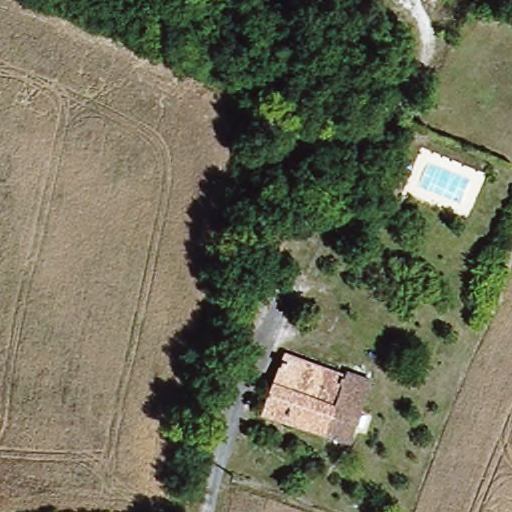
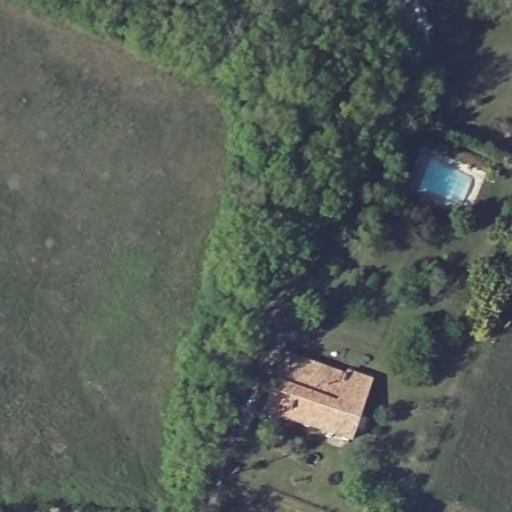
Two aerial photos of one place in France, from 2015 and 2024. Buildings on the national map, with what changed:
unchanged [(375,173),(371,185),(355,179),(362,167),(375,173)]
unchanged [(253,243),(239,239),(247,202),(277,210),(272,225),(267,224),(266,232),(263,245),(253,243)]
unchanged [(262,415),(280,356),(366,381),(346,441),(262,415)]

